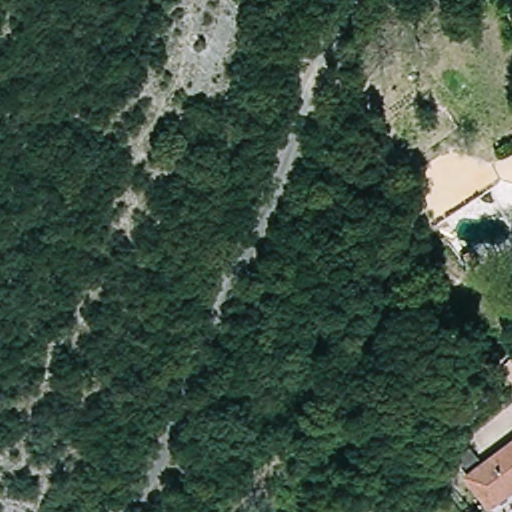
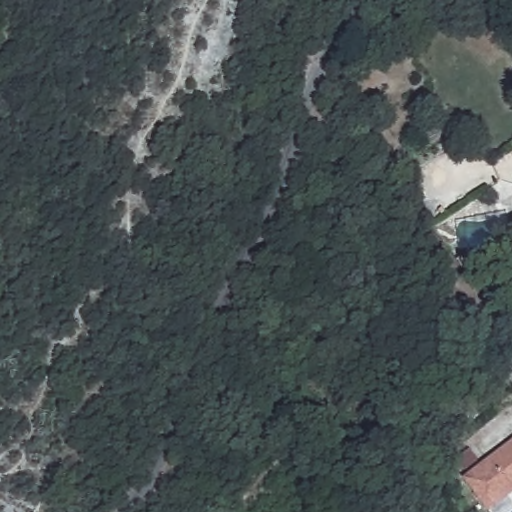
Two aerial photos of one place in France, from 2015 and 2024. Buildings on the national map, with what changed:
unchanged [(512,358),(512,386),(511,386),(497,370),(512,358)]
unchanged [(492,506),(468,475),(512,442),(512,491),(492,506)]

